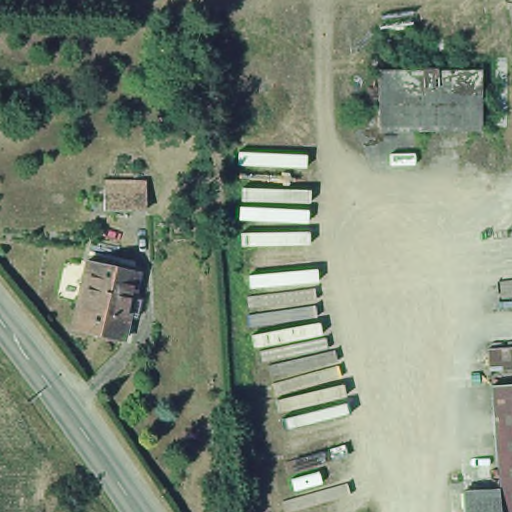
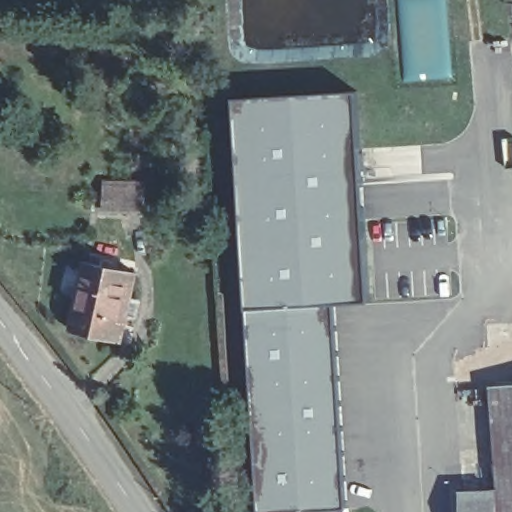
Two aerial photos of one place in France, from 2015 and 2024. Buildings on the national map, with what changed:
demolished [(472,76),(472,132),(370,132),(369,74),(472,76)]
new [(227,104),(345,96),(357,303),(326,306),(342,511),(343,512),(255,512),(240,312),(227,104)]
unchanged [(145,185),(145,210),(106,210),(106,185),(145,185)]
unchanged [(125,323),(115,321),(110,348),(60,337),(73,268),(87,270),(89,262),(101,264),(100,273),(123,277),(118,304),(128,306),(125,323)]
unchanged [(512,347),(512,370),(491,371),(490,348),(512,347)]
unchanged [(512,389),(512,512),(491,512),(483,391),(512,389)]
unchanged [(487,512),(452,512),(451,499),(486,497),(487,512)]

